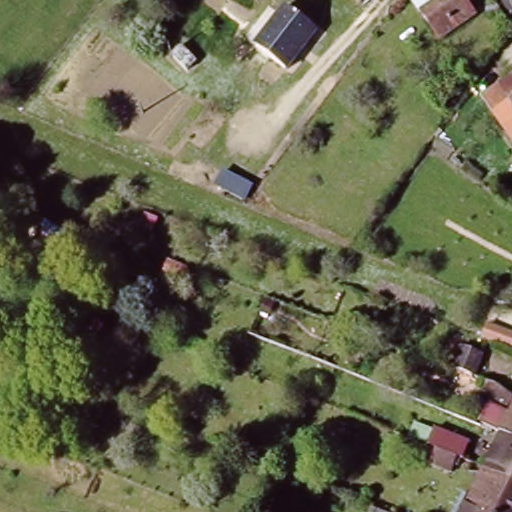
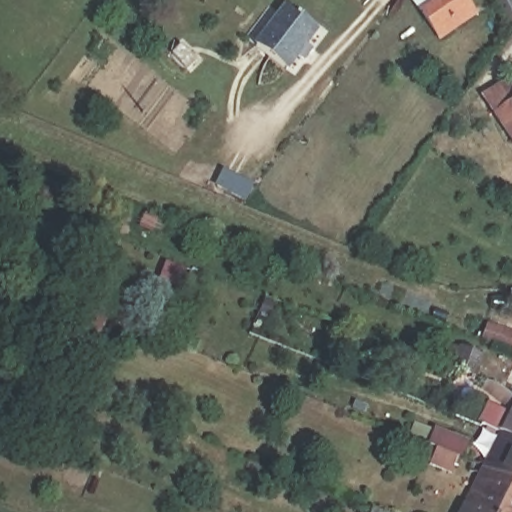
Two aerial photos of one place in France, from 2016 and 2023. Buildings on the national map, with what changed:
unchanged [(438,0),(477,0),(483,8),(438,47),(417,19),(438,0)]
unchanged [(296,5),(322,30),(286,69),(259,45),(296,5)]
unchanged [(507,82),(498,69),(512,57),(512,136),(510,138),(485,102),(507,82)]
unchanged [(461,322),(479,333),(471,354),(449,345),(461,322)]
unchanged [(512,405),(512,424),(504,420),(512,405)]
unchanged [(426,443),(437,420),(441,422),(467,437),(459,459),(454,471),(425,457),(431,446),(426,443)]
unchanged [(512,432),(509,430),(512,426),(512,432)]
unchanged [(512,432),(512,480),(490,470),(509,430),(512,432)]
unchanged [(512,480),(512,512),(496,512),(474,500),(490,470),(512,480)]
unchanged [(464,505),(470,508),(474,500),(496,512),(460,512),(464,505)]

